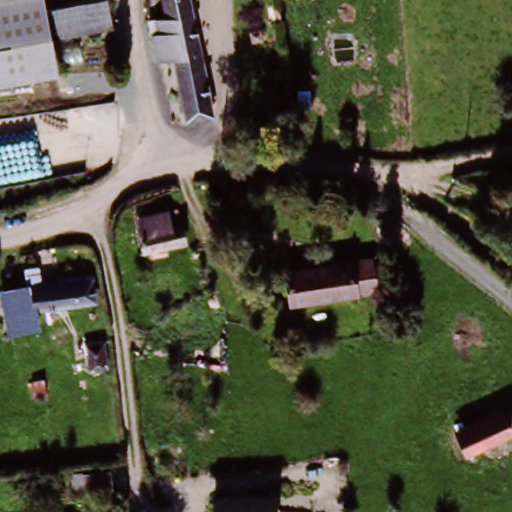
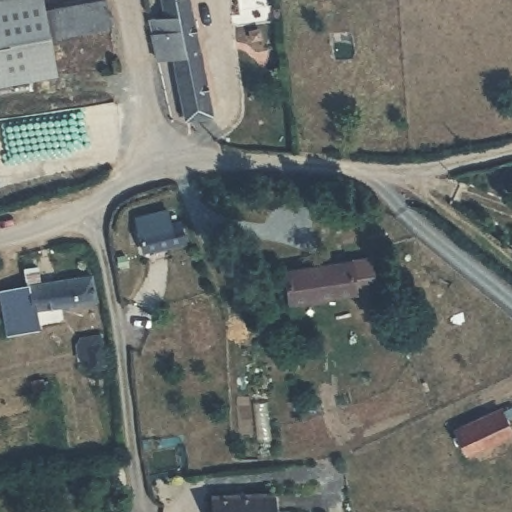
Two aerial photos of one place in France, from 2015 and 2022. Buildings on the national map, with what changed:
unchanged [(10,47),(0,48),(0,0),(32,0),(35,20),(100,11),(104,37),(38,45),(42,80),(15,82),(10,47)]
unchanged [(155,61),(149,20),(167,17),(164,0),(189,0),(210,115),(186,120),(175,60),(155,61)]
unchanged [(0,84),(0,48),(10,47),(15,82),(0,84)]
unchanged [(169,206),(172,222),(182,220),(187,244),(143,254),(134,215),(169,206)]
unchanged [(370,252),(377,292),(287,307),(280,267),(370,252)]
unchanged [(39,269),(40,283),(89,275),(92,302),(37,311),(37,323),(8,329),(2,293),(23,290),(23,272),(39,269)]
unchanged [(90,330),(92,333),(102,332),(102,337),(110,335),(112,370),(84,372),(80,331),(90,330)]
unchanged [(512,426),(512,439),(467,462),(451,432),(503,407),(512,426)]
unchanged [(153,454),(162,452),(165,468),(155,471),(153,454)]
unchanged [(67,474),(77,472),(105,469),(108,491),(80,494),(70,496),(67,474)]
unchanged [(272,512),(210,512),(210,492),(272,491),(272,512)]

